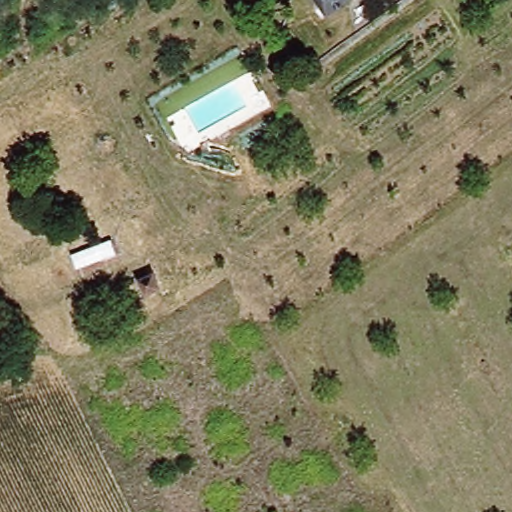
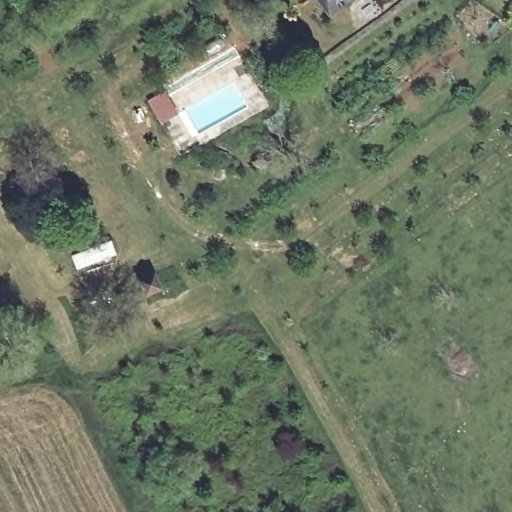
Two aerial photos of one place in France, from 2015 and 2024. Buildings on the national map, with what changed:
unchanged [(320,0),(347,0),(330,13),(320,0)]
unchanged [(145,286),(152,303),(138,309),(130,293),(145,286)]

